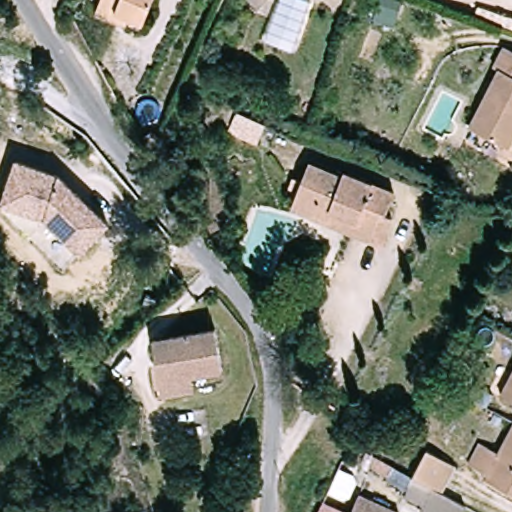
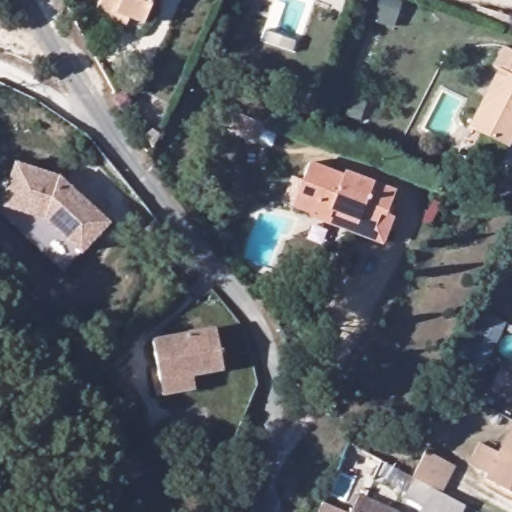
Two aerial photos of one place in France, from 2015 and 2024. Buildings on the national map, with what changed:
unchanged [(124,15),(120,22),(101,13),(106,0),(155,0),(145,23),(124,15)]
unchanged [(512,47),(512,123),(504,141),(470,125),(497,66),(492,64),(502,43),(512,47)]
unchanged [(230,131),(240,108),(267,120),(257,141),(230,131)]
unchanged [(18,161),(61,176),(110,222),(83,251),(47,218),(4,204),(18,161)]
unchanged [(383,248),(370,241),(354,234),(326,220),(295,205),(315,161),(349,177),(352,169),(400,192),(390,212),(398,216),(383,248)]
unchanged [(47,218),(83,251),(65,271),(2,211),(4,204),(47,218)]
unchanged [(168,396),(165,382),(157,343),(222,331),(228,372),(195,377),(198,392),(168,396)]
unchanged [(502,391),(512,375),(512,397),(502,391)]
unchanged [(484,482),(487,477),(475,471),(488,443),(502,450),(512,434),(512,497),(484,482)]
unchanged [(467,512),(427,512),(430,506),(410,496),(418,477),(424,463),(431,450),(460,465),(453,478),(446,491),(471,504),(467,512)]
unchanged [(395,481),(364,467),(370,453),(400,468),(395,481)]
unchanged [(360,499),(388,512),(353,512),(360,499)]
unchanged [(333,512),(320,512),(322,507),(323,508),(333,512)]

